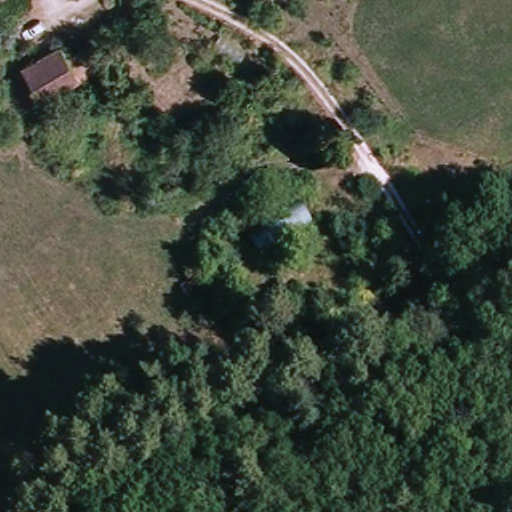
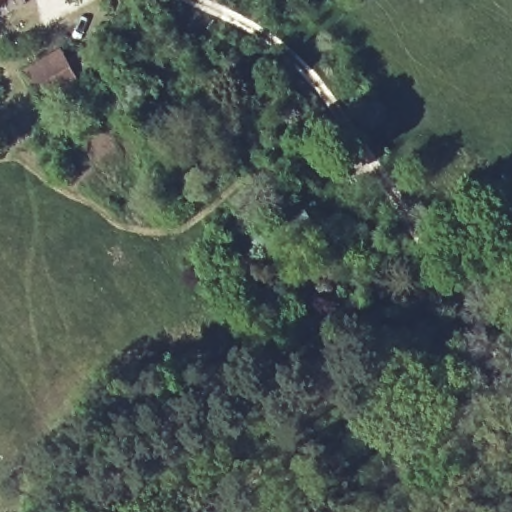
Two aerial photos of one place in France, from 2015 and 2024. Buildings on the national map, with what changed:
unchanged [(25,73),(57,51),(67,66),(91,50),(101,66),(77,82),(45,103),(25,73)]

